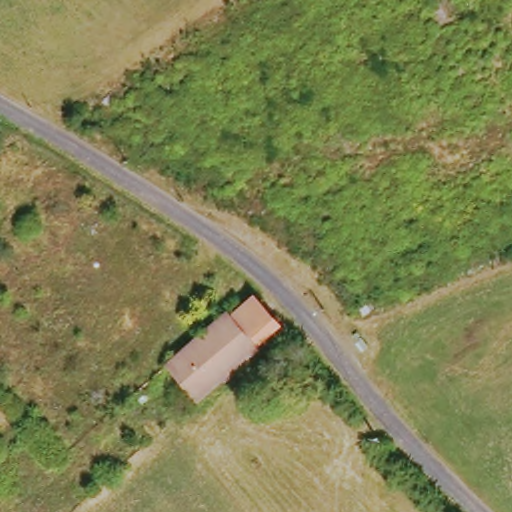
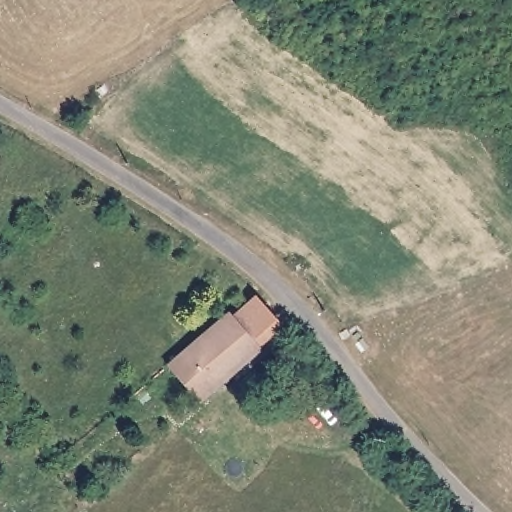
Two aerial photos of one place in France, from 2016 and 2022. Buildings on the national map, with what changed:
unchanged [(230,317),(253,297),(271,320),(250,339),(258,349),(194,401),(166,365),(228,311),(230,317)]

